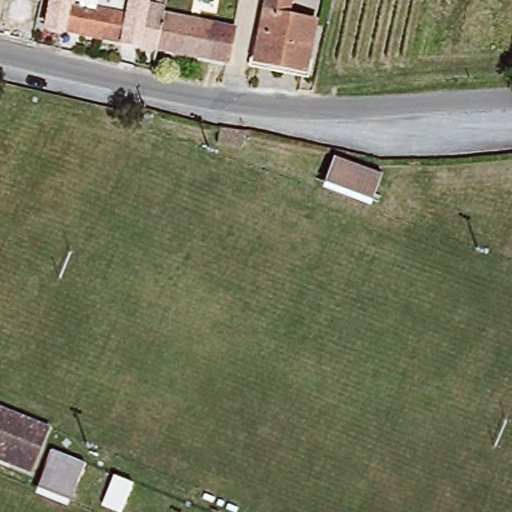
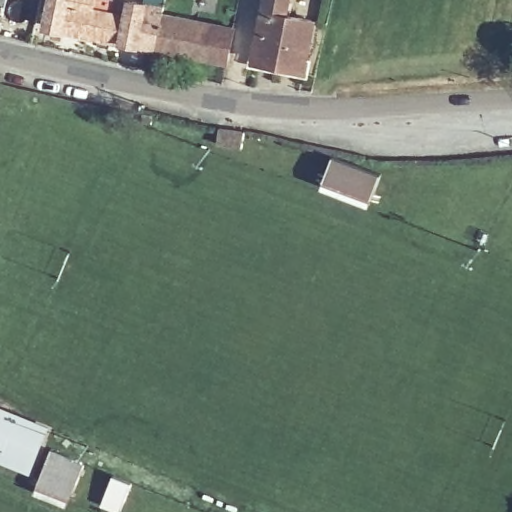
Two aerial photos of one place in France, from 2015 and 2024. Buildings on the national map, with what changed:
unchanged [(106,0),(159,11),(158,16),(150,50),(43,26),(49,0),(106,0)]
unchanged [(314,15),(304,71),(254,62),(266,0),(287,0),(285,10),(314,15)]
unchanged [(150,50),(158,16),(230,31),(223,66),(150,50)]
unchanged [(151,117),(149,125),(141,124),(143,115),(151,117)]
unchanged [(240,147),(219,142),(222,128),(243,134),(240,147)]
unchanged [(328,156),(379,169),(373,194),(322,180),(328,156)]
unchanged [(0,411),(45,430),(28,470),(0,459),(0,411)]
unchanged [(39,481),(52,450),(84,465),(71,495),(39,481)]

